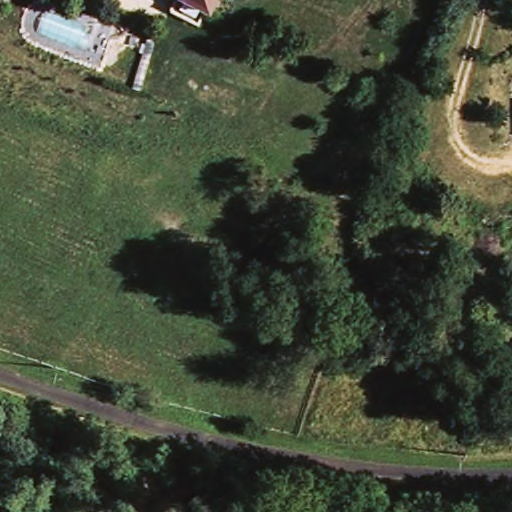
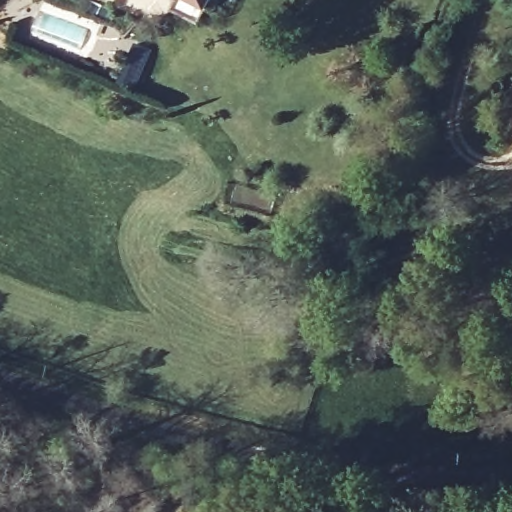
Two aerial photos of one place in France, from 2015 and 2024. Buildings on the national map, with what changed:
unchanged [(194,0),(214,0),(210,7),(194,0)]

